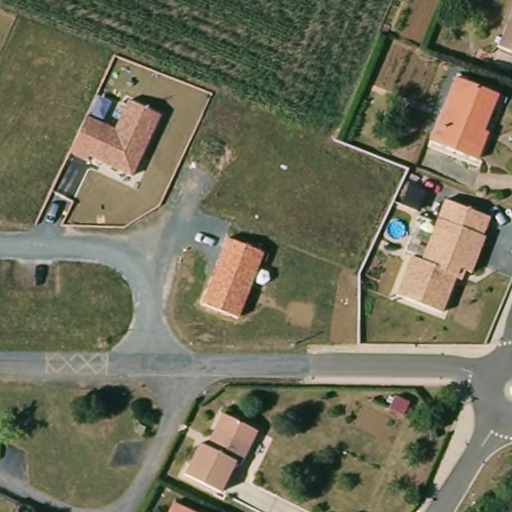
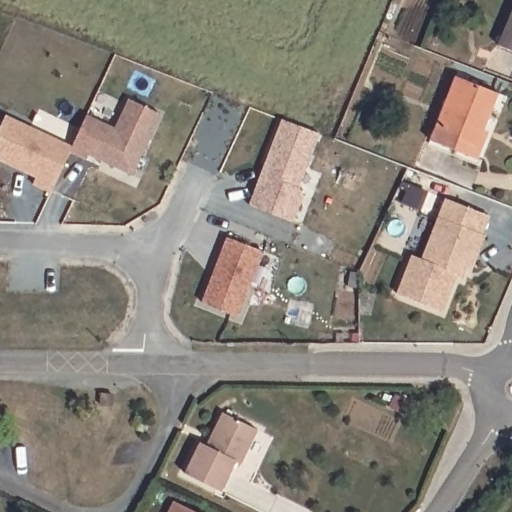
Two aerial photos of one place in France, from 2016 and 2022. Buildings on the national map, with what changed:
unchanged [(512,15),(512,57),(497,51),(512,15)]
unchanged [(455,81),(496,99),(479,143),(484,145),(476,165),(429,146),(455,81)]
unchanged [(85,115),(115,127),(127,99),(160,113),(132,176),(88,156),(86,161),(68,152),(85,115)]
new [(48,193),(31,185),(35,179),(0,163),(0,126),(4,116),(70,147),(68,152),(48,193)]
new [(281,119),(319,134),(299,189),(303,197),(294,224),(248,206),(281,119)]
unchanged [(410,254),(421,257),(444,199),(488,216),(482,234),(484,235),(472,272),(459,268),(442,312),(395,294),(410,254)]
unchanged [(238,317),(200,304),(225,238),(263,253),(238,317)]
unchanged [(100,394),(112,395),(111,405),(99,404),(100,394)]
unchanged [(199,448),(205,451),(222,418),(257,435),(239,470),(234,467),(220,497),(184,479),(199,448)]
unchanged [(185,512),(170,512),(173,506),(185,512)]

